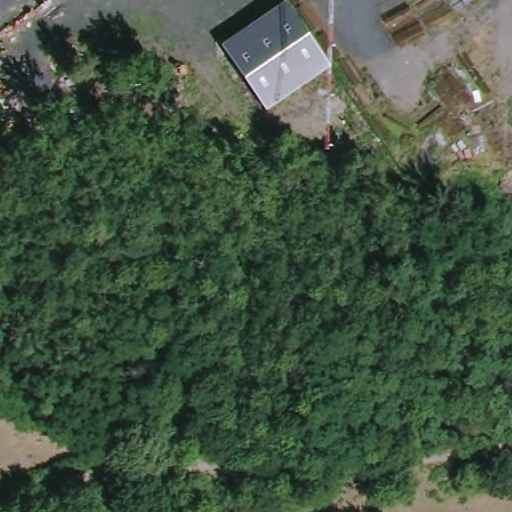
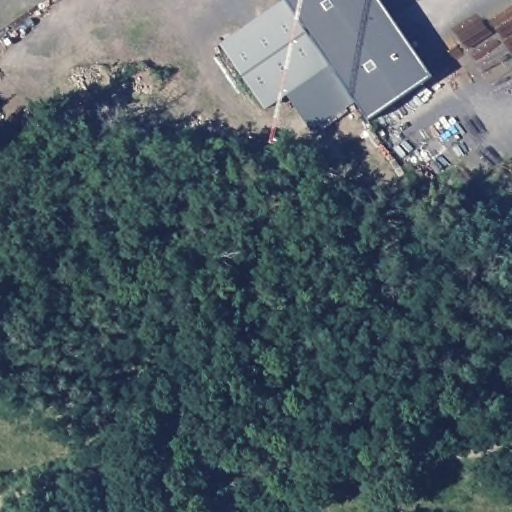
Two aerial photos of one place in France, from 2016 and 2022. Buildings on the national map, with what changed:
new [(284,1),(284,0),(378,0),(432,78),(369,122),(357,104),(312,132),(289,98),(331,67),(284,1)]
unchanged [(331,67),(266,114),(221,42),(284,1),(331,67)]

